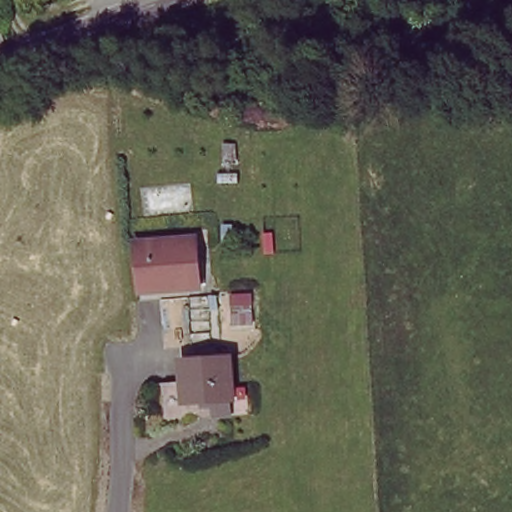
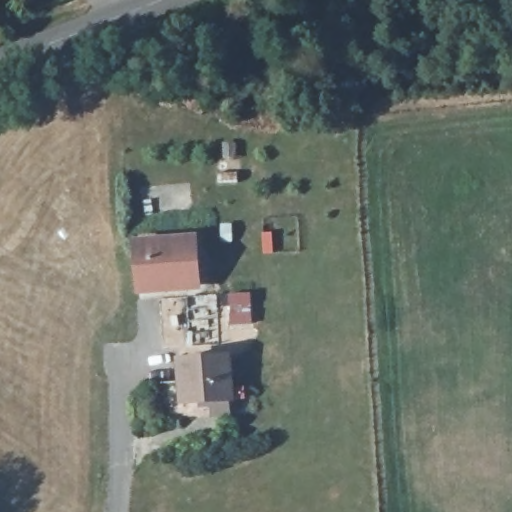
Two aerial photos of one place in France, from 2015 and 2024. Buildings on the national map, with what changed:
unchanged [(0,31),(5,41),(1,43),(0,43),(0,31)]
unchanged [(196,284),(136,289),(133,246),(193,242),(196,284)]
unchanged [(264,330),(229,329),(226,291),(260,287),(264,330)]
unchanged [(205,412),(203,397),(176,398),(173,353),(221,350),(223,395),(219,396),(220,411),(205,412)]

